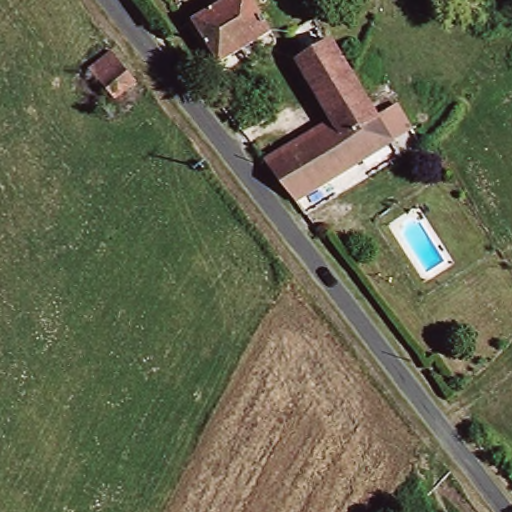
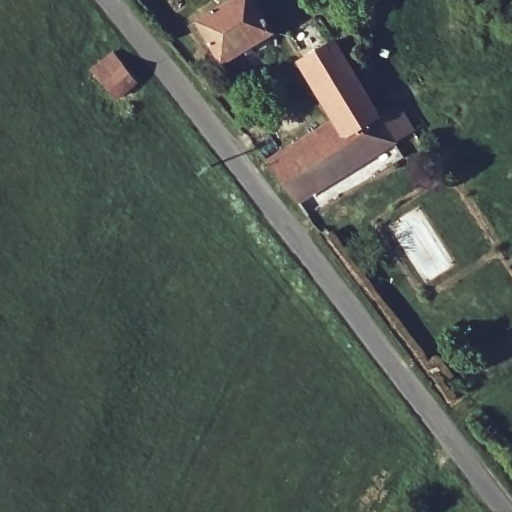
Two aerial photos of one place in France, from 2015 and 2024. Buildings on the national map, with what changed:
unchanged [(213,62),(188,19),(220,0),(245,0),(264,31),(213,62)]
unchanged [(467,9),(484,5),(487,22),(471,26),(467,9)]
unchanged [(297,61),(330,40),(390,137),(292,197),(264,163),(331,121),(297,61)]
unchanged [(106,52),(132,85),(112,102),(86,66),(106,52)]

